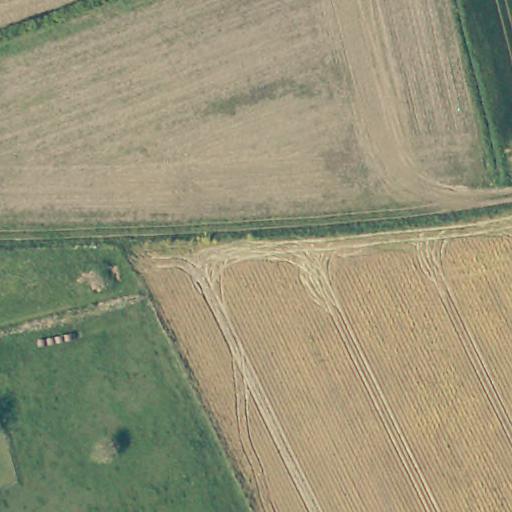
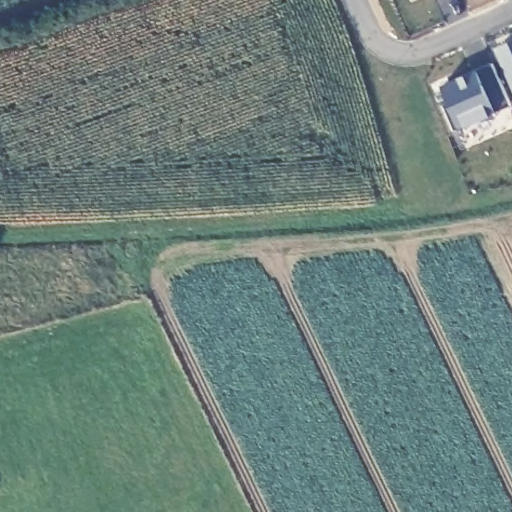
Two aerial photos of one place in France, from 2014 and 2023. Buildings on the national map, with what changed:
new [(512,40),(512,86),(494,47),(512,40)]
new [(460,127),(442,85),(491,65),(508,104),(460,127)]

